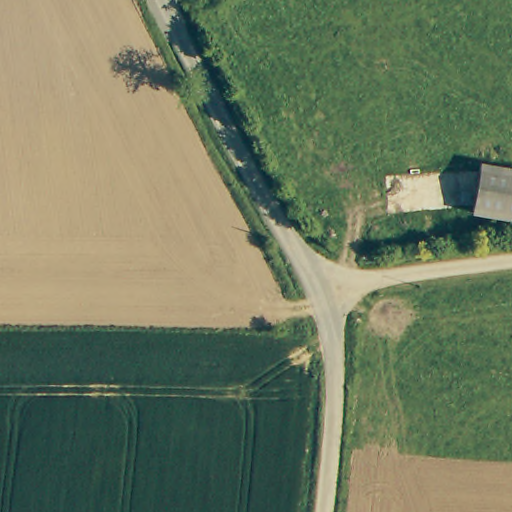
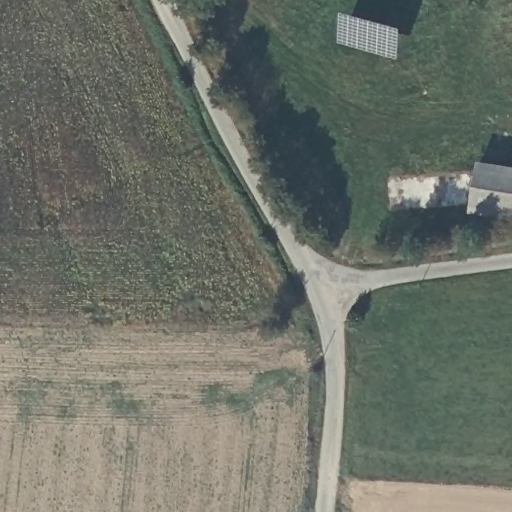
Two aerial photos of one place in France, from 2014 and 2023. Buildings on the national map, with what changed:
unchanged [(512,220),(469,212),(478,162),(512,168),(512,220)]

